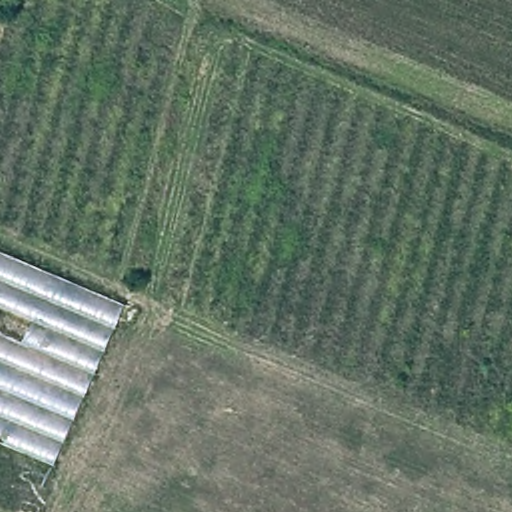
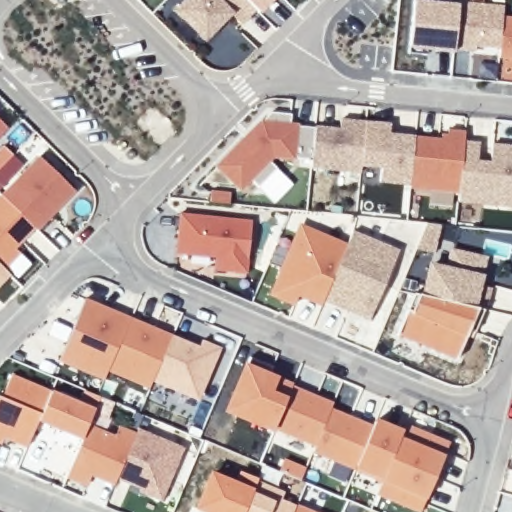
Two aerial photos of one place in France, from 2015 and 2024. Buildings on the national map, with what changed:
new [(239,27),(230,17),(203,44),(172,12),(183,0),(243,0),(255,11),(239,27)]
new [(243,0),(273,0),(259,16),(255,11),(243,0)]
new [(413,0),(428,0),(458,3),(454,49),(453,53),(434,52),(434,47),(427,47),(426,55),(408,53),(413,0)]
new [(458,3),(502,8),(502,18),(499,49),(475,47),(475,52),(454,49),(458,3)]
new [(497,58),(499,49),(502,18),(512,19),(512,59),(497,58)]
new [(272,158),(269,163),(275,169),(257,187),(250,181),(240,192),(215,168),(268,112),(290,114),(289,125),(314,127),(311,162),(272,158)]
new [(311,170),(311,162),(314,127),(339,129),(339,120),(363,121),(359,166),(359,168),(359,174),(311,170)]
new [(379,169),(359,168),(359,166),(363,121),(389,123),(388,135),(414,137),(410,186),(379,184),(379,169)]
new [(0,132),(0,122),(5,127),(0,132)]
new [(410,186),(414,137),(440,139),(440,134),(447,135),(447,130),(464,131),(464,142),(457,194),(410,191),(410,186)]
new [(457,194),(464,142),(512,146),(512,208),(457,203),(457,194)]
new [(0,196),(0,195),(39,156),(75,193),(36,233),(0,196)]
new [(212,272),(212,259),(175,255),(179,214),(252,220),(247,274),(212,272)]
new [(320,307),(297,296),(293,306),(269,294),(296,234),(311,241),(316,231),(346,246),(322,303),(320,307)]
new [(368,324),(322,303),(346,246),(352,231),(398,250),(368,324)]
new [(482,275),(476,309),(420,296),(427,264),(445,268),(449,248),(486,257),(482,275)]
demolished [(0,253),(125,307),(36,512),(0,497),(0,253)]
new [(0,266),(10,275),(0,285),(0,266)]
new [(398,335),(417,295),(420,296),(476,309),(455,360),(398,335)]
new [(58,362),(84,300),(129,319),(107,372),(103,381),(58,362)]
new [(129,319),(171,337),(151,382),(148,390),(107,372),(129,319)]
new [(198,348),(201,342),(220,350),(197,402),(151,382),(171,337),(198,348)]
new [(226,412),(248,358),(271,368),(267,378),(291,387),(272,430),(272,432),(226,412)]
new [(332,405),(330,410),(314,448),(272,430),(291,387),(332,405)]
new [(93,411),(87,426),(81,440),(37,421),(50,392),(93,411)]
new [(390,461),(381,482),(353,471),(312,453),(314,448),(330,410),(371,428),(373,423),(380,426),(401,435),(390,461)]
new [(91,475),(87,484),(66,475),(87,426),(114,437),(118,427),(135,434),(116,479),(114,484),(91,475)]
new [(404,428),(442,444),(447,447),(442,460),(434,480),(390,461),(401,435),(404,428)]
new [(135,434),(137,429),(183,448),(161,502),(137,492),(139,489),(116,479),(135,434)]
new [(414,510),(376,494),(381,482),(390,461),(434,480),(426,499),(420,512),(414,510)]
new [(283,493),(280,500),(295,506),(292,512),(243,512),(256,482),(283,493)]
new [(292,512),(295,506),(309,512),(292,512)]

